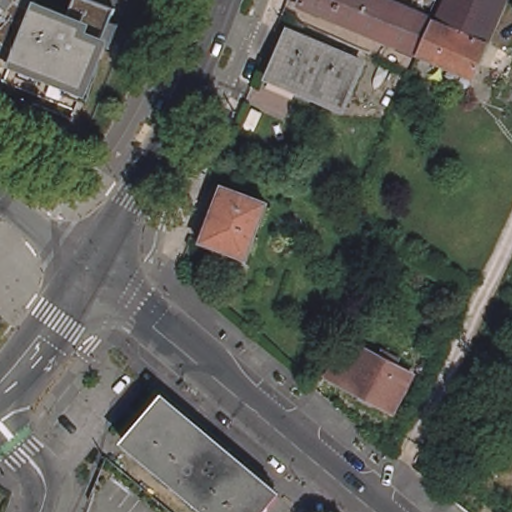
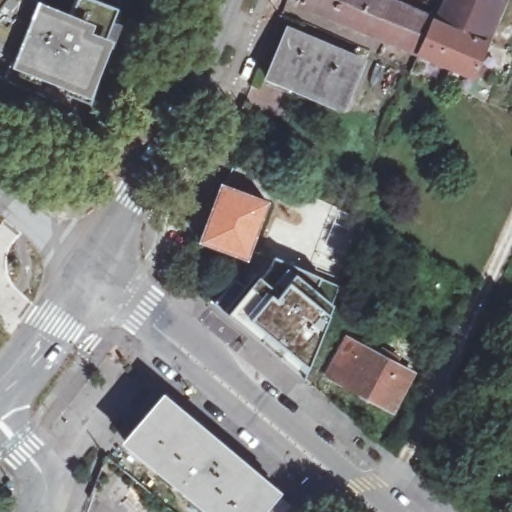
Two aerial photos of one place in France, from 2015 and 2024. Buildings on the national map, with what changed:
unchanged [(57,89),(60,81),(5,62),(0,57),(0,0),(40,0),(65,10),(69,0),(105,0),(115,4),(110,20),(120,24),(90,99),(57,89)]
unchanged [(298,8),(302,0),(341,0),(332,22),(298,8)]
unchanged [(420,60),(332,22),(341,0),(376,0),(387,5),(390,0),(396,0),(402,2),(398,10),(413,16),(434,25),(420,60)]
unchanged [(434,25),(435,25),(437,25),(448,0),(508,0),(473,82),(420,60),(434,25)]
unchanged [(289,36),(363,65),(343,112),(295,94),(298,85),(273,75),(289,36)]
unchanged [(250,259),(200,241),(222,185),(246,195),(270,205),(250,259)]
new [(257,273),(275,290),(291,269),(293,265),(340,283),(327,322),(305,369),(277,350),(275,352),(225,312),(257,273)]
unchanged [(395,406),(327,371),(345,335),(379,352),(382,347),(397,355),(394,360),(413,370),(395,406)]
unchanged [(167,396),(272,493),(254,512),(211,512),(127,440),(167,396)]

